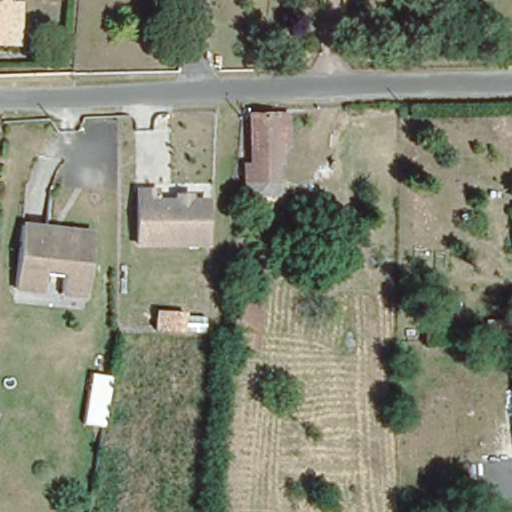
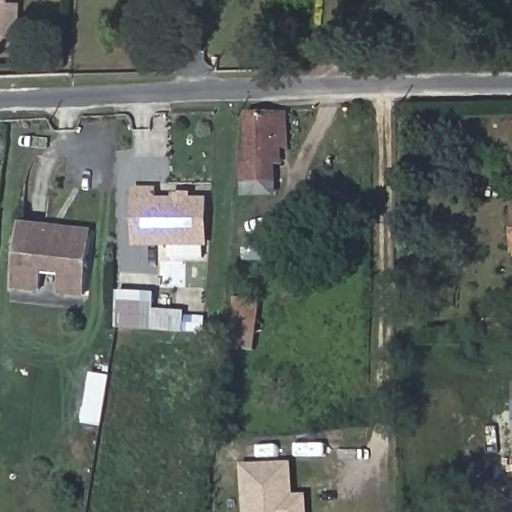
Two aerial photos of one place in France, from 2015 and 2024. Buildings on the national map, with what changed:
unchanged [(19,29),(4,29),(4,45),(0,45),(0,0),(5,0),(5,7),(20,8),(19,29)]
unchanged [(283,167),(276,168),(276,198),(241,197),(241,167),(248,166),(244,114),(283,113),(283,167)]
unchanged [(204,244),(134,245),(132,192),(150,192),(151,202),(171,202),(172,196),(186,196),(186,202),(203,203),(204,244)]
unchanged [(61,288),(62,266),(56,261),(46,261),(38,270),(38,285),(9,283),(16,220),(44,222),(49,227),(90,231),(84,290),(61,288)]
new [(155,295),(154,310),(185,312),(183,333),(116,328),(119,292),(155,295)]
unchanged [(230,361),(237,298),(255,299),(251,363),(230,361)]
unchanged [(107,426),(83,423),(92,374),(113,377),(107,426)]
new [(244,512),(241,466),(293,465),(294,494),(307,494),(308,512),(244,512)]

